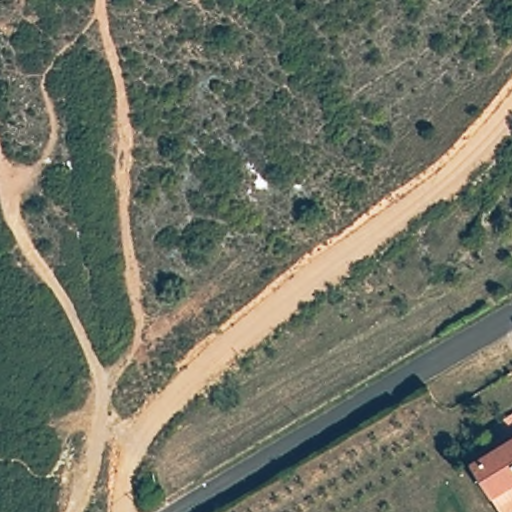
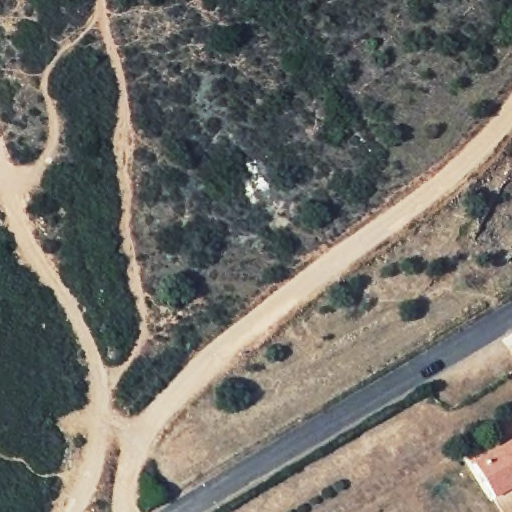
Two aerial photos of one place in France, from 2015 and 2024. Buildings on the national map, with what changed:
unchanged [(470,460),(512,435),(512,481),(491,494),(470,460)]

